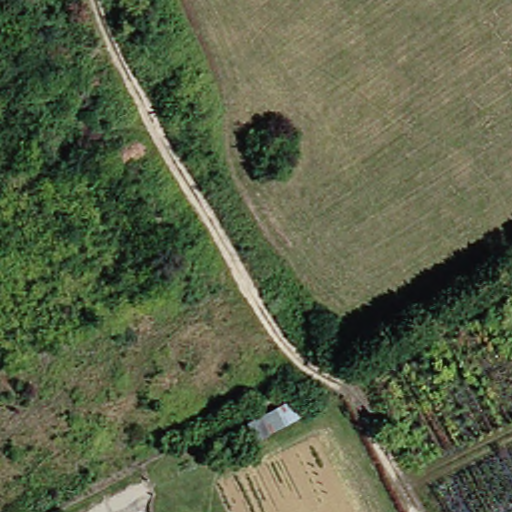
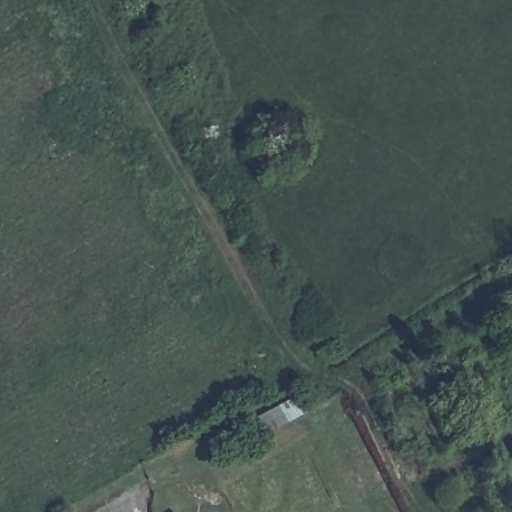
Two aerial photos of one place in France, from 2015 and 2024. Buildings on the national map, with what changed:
unchanged [(253,442),(245,428),(296,400),(304,415),(253,442)]
unchanged [(244,447),(232,453),(226,441),(237,435),(244,447)]

